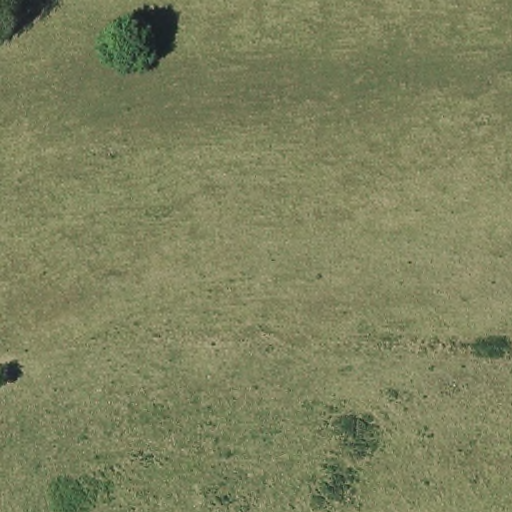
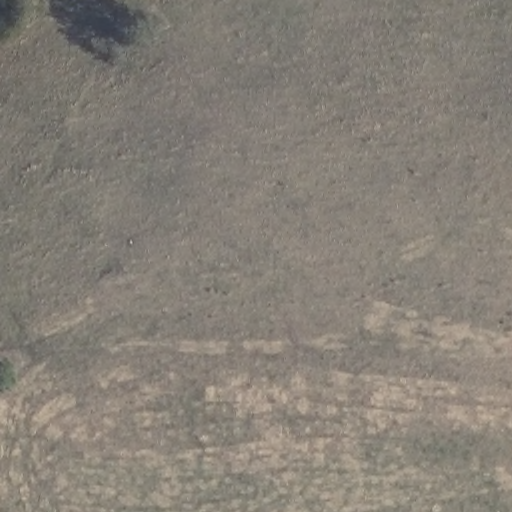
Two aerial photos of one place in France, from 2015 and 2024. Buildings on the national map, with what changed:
[]

